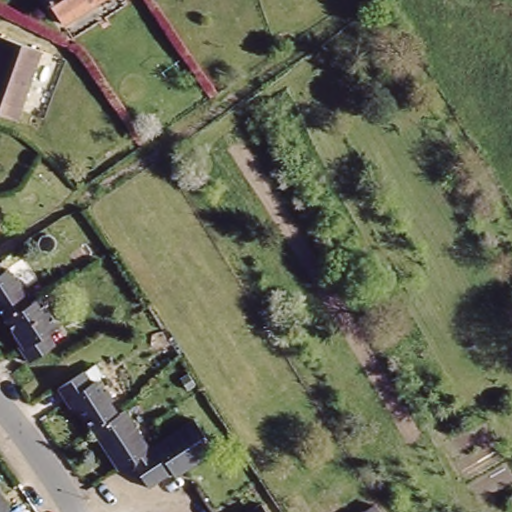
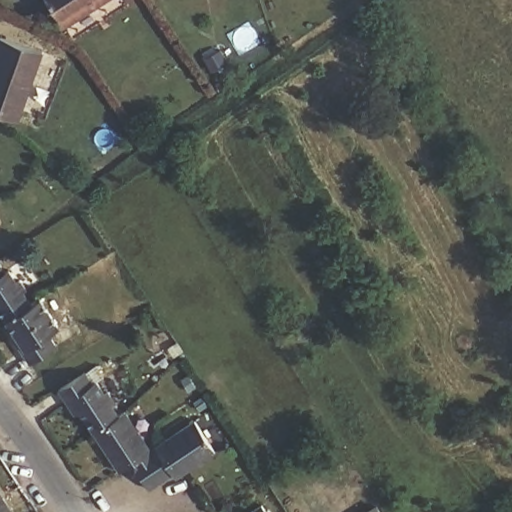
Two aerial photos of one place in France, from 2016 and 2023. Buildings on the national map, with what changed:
unchanged [(45,0),(98,0),(60,25),(45,0)]
unchanged [(39,54),(17,120),(0,114),(0,40),(39,54)]
unchanged [(52,331),(45,336),(54,348),(32,362),(14,335),(18,332),(0,305),(0,253),(52,331)]
unchanged [(154,480),(142,488),(122,458),(117,462),(110,452),(99,460),(93,451),(100,446),(82,419),(75,424),(58,398),(86,379),(115,424),(154,480)]
unchanged [(115,424),(126,416),(147,448),(190,418),(209,447),(177,469),(172,469),(154,480),(115,424)]
unchanged [(9,507),(3,512),(0,512),(0,495),(9,507)]
unchanged [(259,502),(265,512),(245,512),(259,502)]
unchanged [(373,502),(378,512),(355,512),(373,502)]

